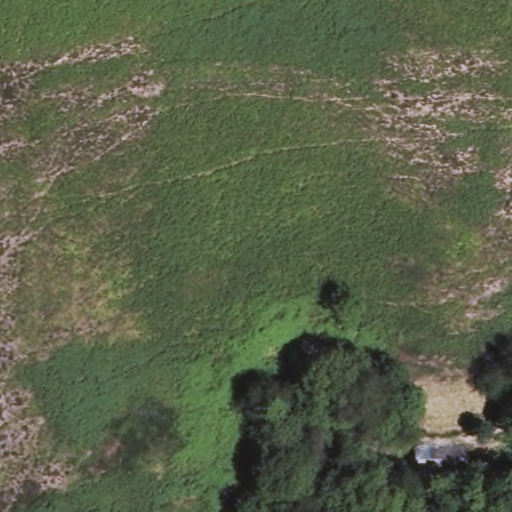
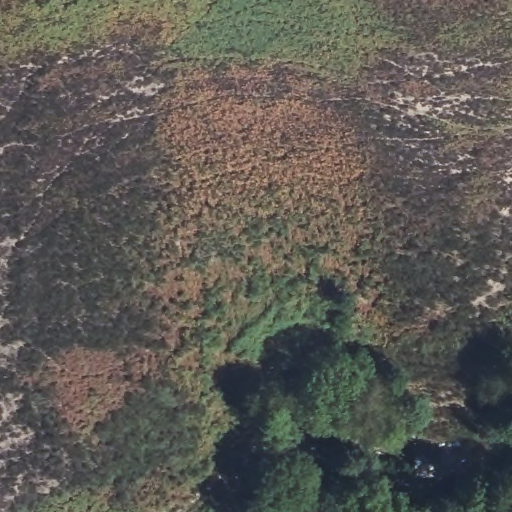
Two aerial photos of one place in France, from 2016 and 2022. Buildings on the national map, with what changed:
unchanged [(409,446),(467,443),(470,469),(413,475),(409,446)]

